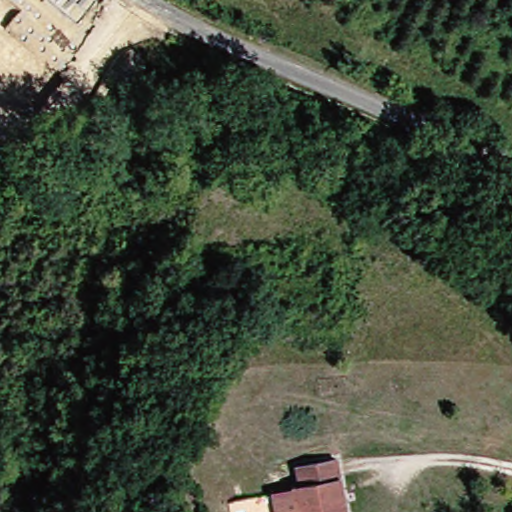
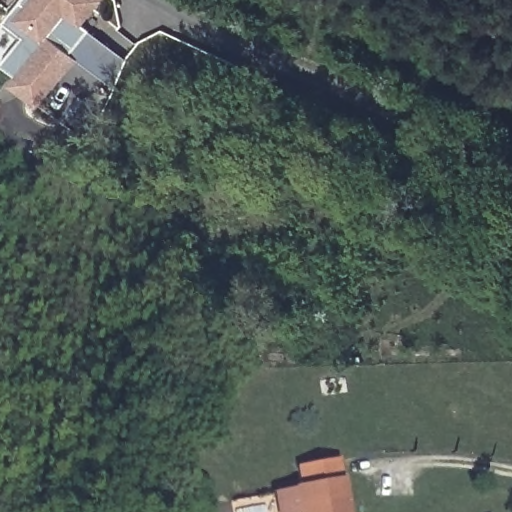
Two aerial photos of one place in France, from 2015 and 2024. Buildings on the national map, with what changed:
new [(82,29),(124,61),(112,90),(77,62),(40,109),(10,86),(17,79),(2,65),(0,63),(0,28),(4,24),(23,0),(103,0),(82,29)]
demolished [(76,28),(44,0),(101,0),(76,28)]
unchanged [(301,490),(301,485),(307,485),(306,466),(345,463),(349,512),(283,512),(282,492),(301,490)]

